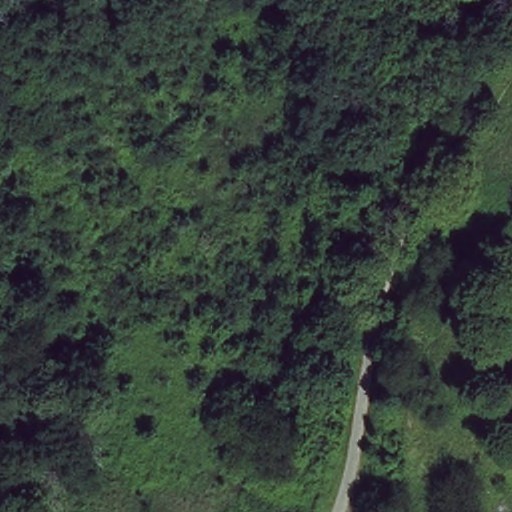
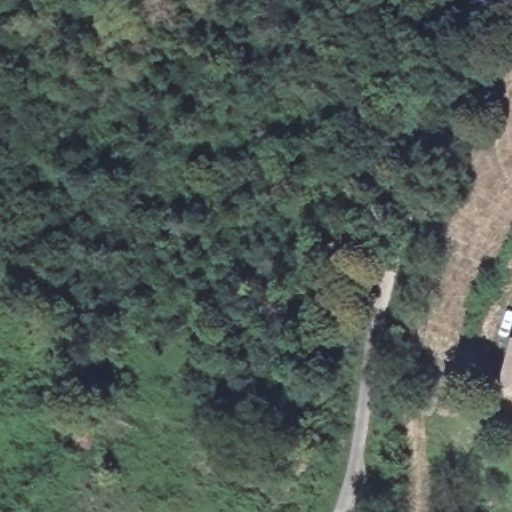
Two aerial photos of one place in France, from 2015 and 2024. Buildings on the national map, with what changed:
unchanged [(502,390),(512,347),(512,393),(502,390)]
unchanged [(379,489),(376,501),(360,497),(363,485),(379,489)]

